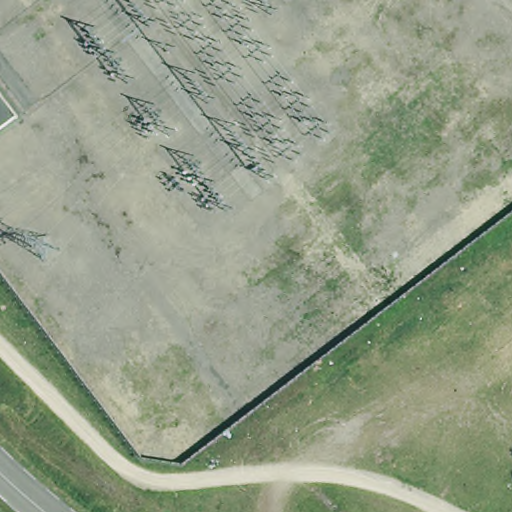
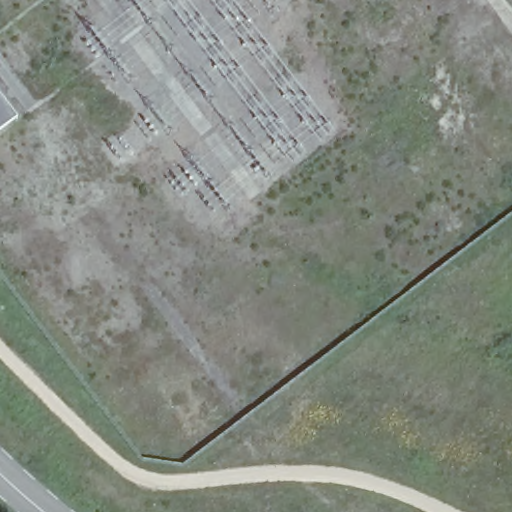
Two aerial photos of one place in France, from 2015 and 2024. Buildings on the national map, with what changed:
unchanged [(0,131),(0,89),(21,116),(0,131)]

